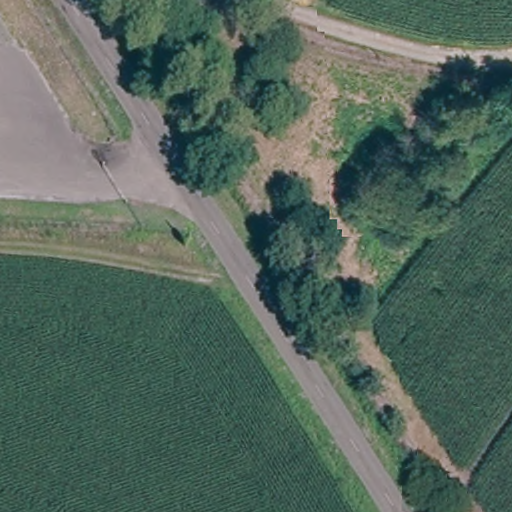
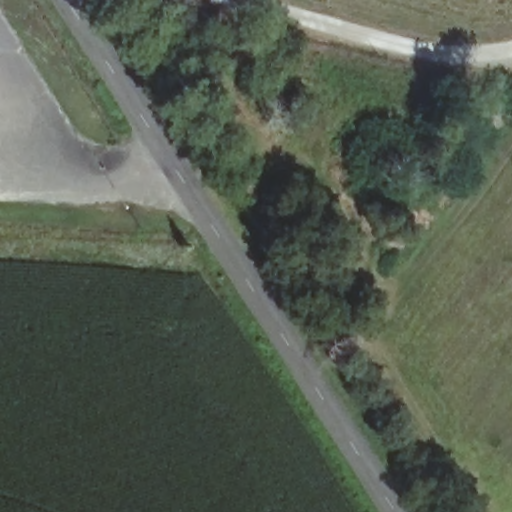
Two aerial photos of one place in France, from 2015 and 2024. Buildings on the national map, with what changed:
[]

